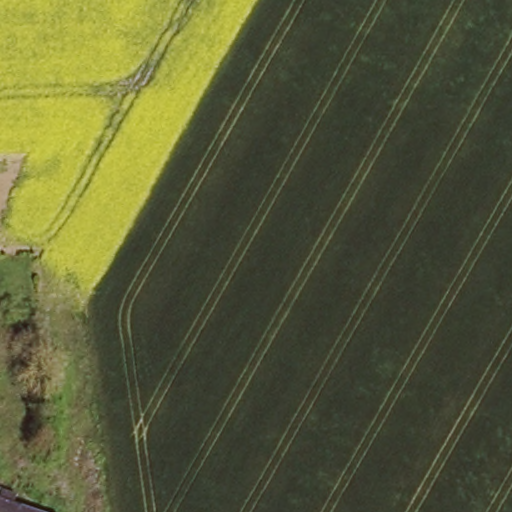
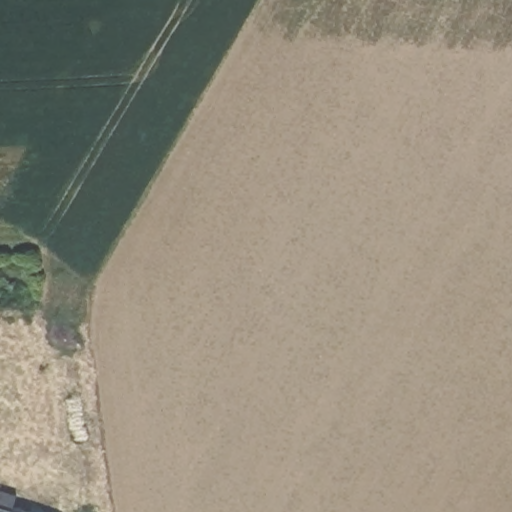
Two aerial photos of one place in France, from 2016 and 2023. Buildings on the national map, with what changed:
unchanged [(1,505),(4,495),(21,501),(17,511),(19,512),(0,512),(0,505),(1,505)]

